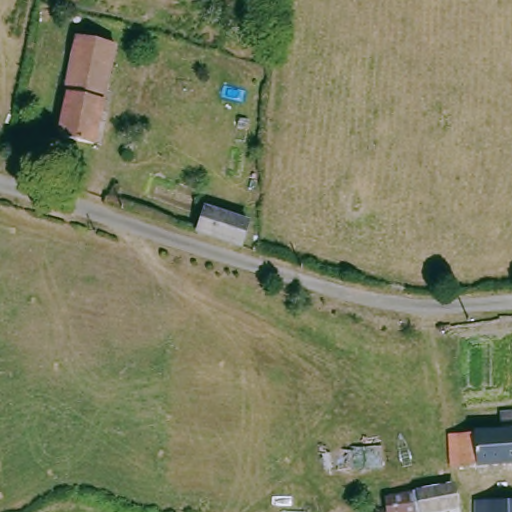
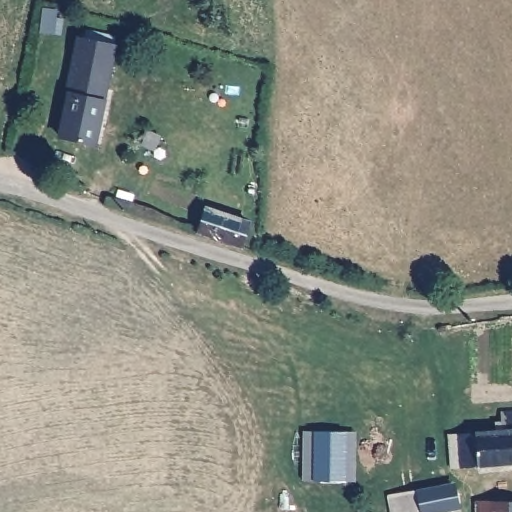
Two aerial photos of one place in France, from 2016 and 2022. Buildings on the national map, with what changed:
unchanged [(110,51),(91,147),(57,138),(65,99),(59,96),(69,41),(110,51)]
unchanged [(200,213),(243,229),(240,249),(216,245),(192,237),(200,213)]
unchanged [(462,471),(464,469),(461,438),(491,436),(492,425),(512,424),(512,467),(462,471)]
new [(356,482),(345,482),(312,483),(302,482),(302,431),(312,431),(345,432),(356,432),(356,482)]
unchanged [(453,512),(392,512),(390,498),(451,487),(456,512),(453,512)]
unchanged [(512,501),(512,512),(474,512),(473,503),(512,501)]

